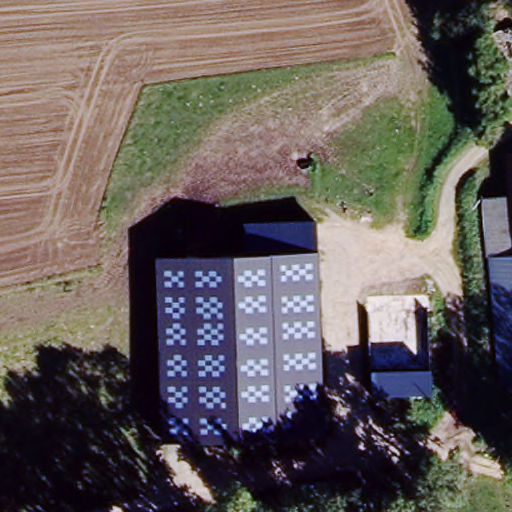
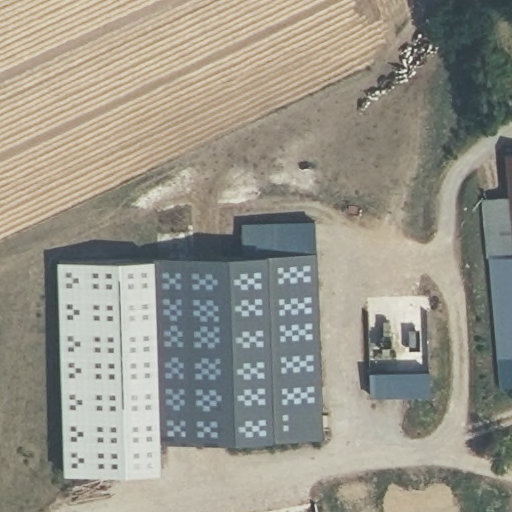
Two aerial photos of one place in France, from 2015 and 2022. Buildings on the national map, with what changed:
unchanged [(507,199),(503,156),(512,155),(512,255),(488,257),(485,257),(480,201),(507,199)]
unchanged [(242,224),(315,222),(317,253),(322,436),(272,438),(191,439),(160,440),(155,257),(186,256),(242,254),(242,224)]
unchanged [(495,383),(488,257),(512,255),(512,383),(495,383)]
new [(160,440),(161,476),(64,479),(57,268),(155,257),(160,440)]
unchanged [(430,397),(370,398),(368,371),(430,370),(430,397)]

